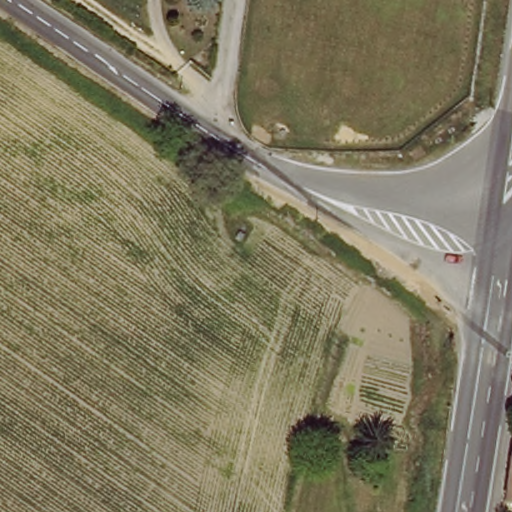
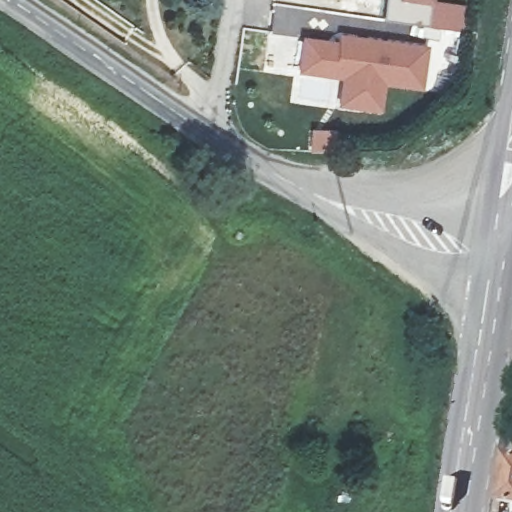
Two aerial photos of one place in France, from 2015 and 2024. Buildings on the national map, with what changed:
new [(434,0),(433,5),(428,26),(385,19),(389,0),(434,0)]
new [(423,90),(387,86),(382,113),(338,106),(342,80),(297,73),(302,35),(338,40),(340,32),(431,46),(423,90)]
unchanged [(505,504),(507,490),(512,455),(512,505),(505,504)]

